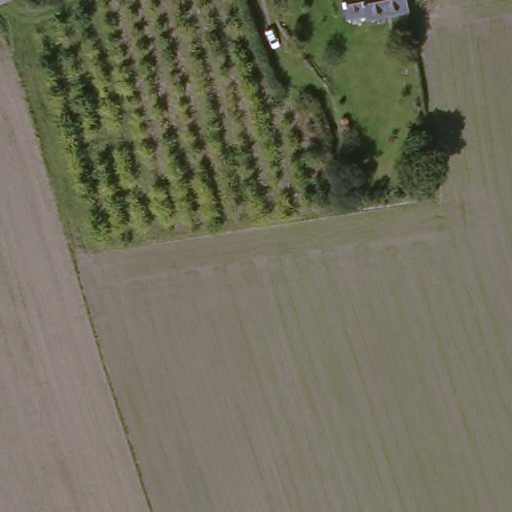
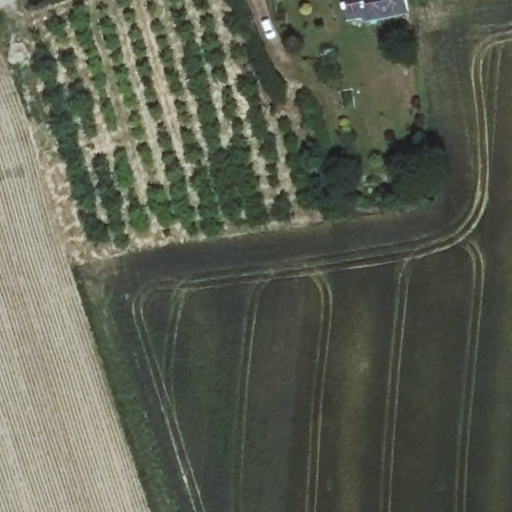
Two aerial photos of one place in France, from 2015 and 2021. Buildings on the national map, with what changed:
unchanged [(403,19),(362,25),(361,22),(343,25),(338,0),(400,0),(403,19)]

